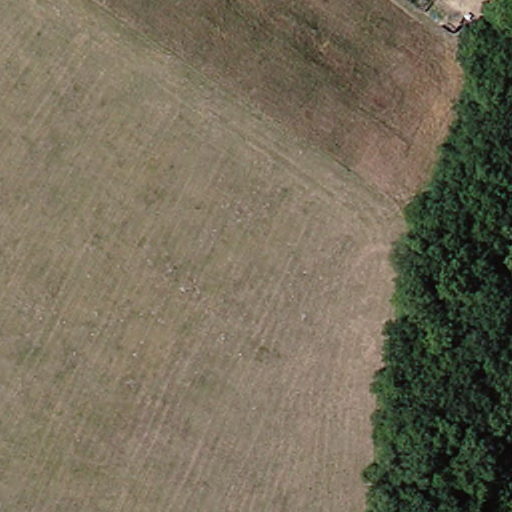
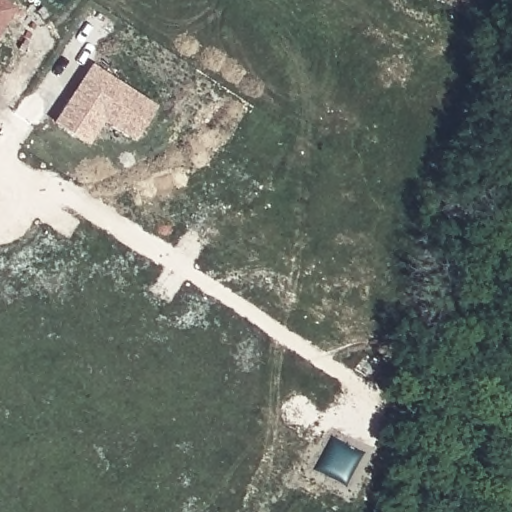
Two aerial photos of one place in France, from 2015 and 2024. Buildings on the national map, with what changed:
new [(0,0),(8,0),(19,7),(0,34),(0,0)]
new [(135,139),(105,120),(90,145),(55,122),(94,62),(159,104),(135,139)]

